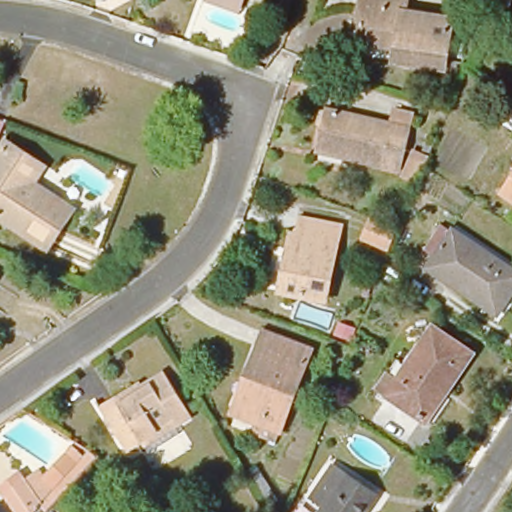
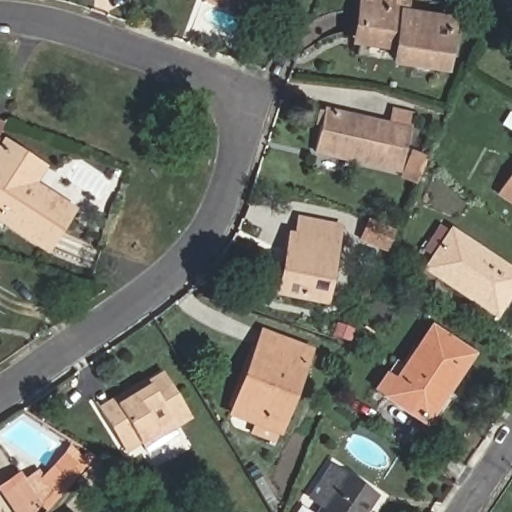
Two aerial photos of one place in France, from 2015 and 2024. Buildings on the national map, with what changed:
unchanged [(224,0),(239,0),(237,5),(224,0)]
unchanged [(389,77),(392,60),(352,55),(359,8),(357,7),(359,0),(404,0),(400,27),(448,34),(440,85),(389,77)]
unchanged [(493,7),(473,0),(495,0),(493,7)]
unchanged [(320,109),(384,124),(387,107),(408,112),(405,129),(395,170),(310,152),(320,109)]
unchanged [(43,247),(0,219),(0,155),(5,147),(27,162),(37,170),(27,186),(67,212),(43,247)]
unchanged [(411,182),(397,177),(408,152),(422,157),(411,182)]
unchanged [(512,175),(512,201),(499,192),(512,175)]
unchanged [(291,234),(297,235),(300,218),(340,226),(325,302),(279,293),(291,234)]
unchanged [(368,222),(393,232),(386,251),(360,241),(368,222)]
unchanged [(512,265),(512,288),(497,311),(426,263),(452,226),(512,265)]
unchanged [(470,353),(447,387),(439,381),(416,416),(387,396),(432,328),(470,353)]
unchanged [(260,347),(265,348),(270,335),(305,348),(276,424),(237,409),(260,347)]
unchanged [(126,452),(100,410),(164,372),(190,415),(126,452)]
unchanged [(10,512),(0,497),(0,479),(14,467),(21,477),(34,466),(40,471),(67,443),(91,457),(28,512),(10,512)]
unchanged [(319,512),(323,506),(310,497),(332,466),(377,497),(367,512),(319,512)]

